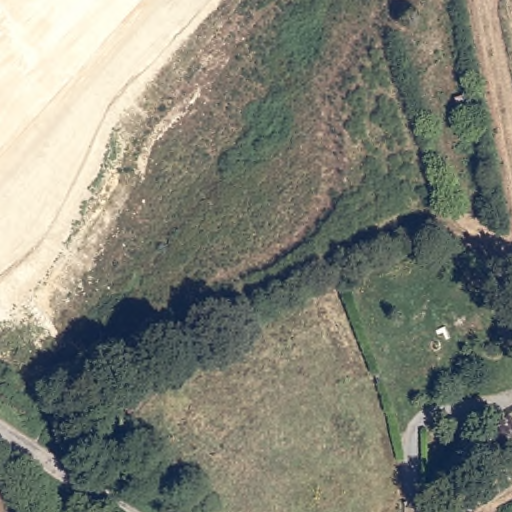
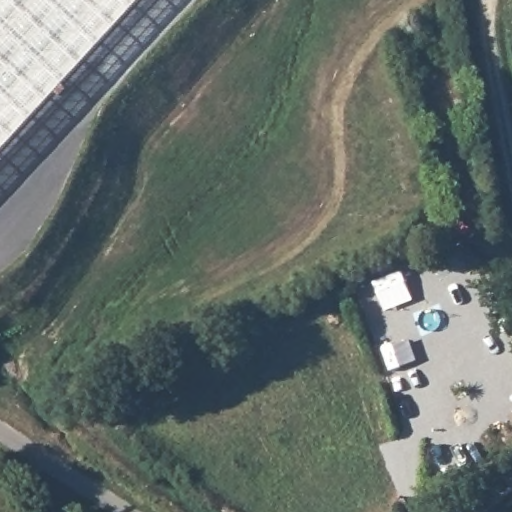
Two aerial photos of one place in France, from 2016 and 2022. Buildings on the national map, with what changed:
new [(142,0),(0,156),(0,0),(142,0)]

